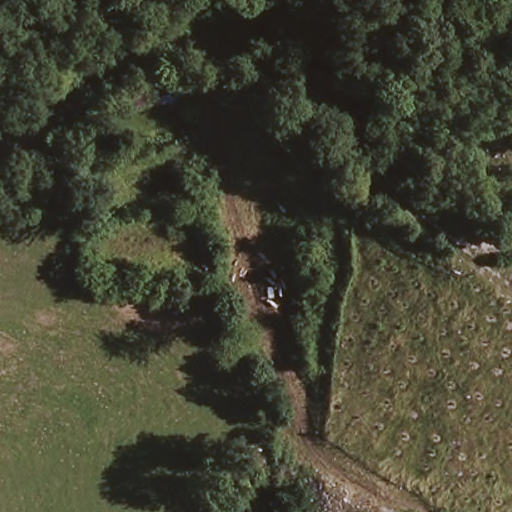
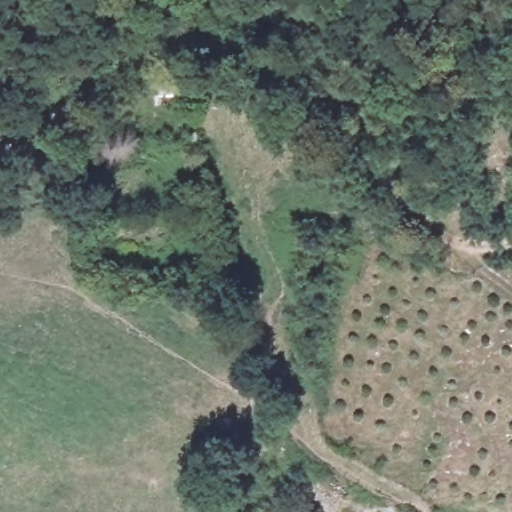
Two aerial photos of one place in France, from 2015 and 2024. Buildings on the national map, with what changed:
unchanged [(123,109),(122,93),(146,90),(145,69),(196,66),(197,101),(123,109)]

